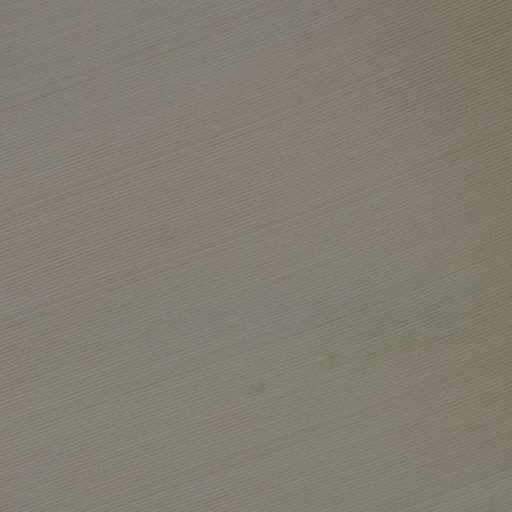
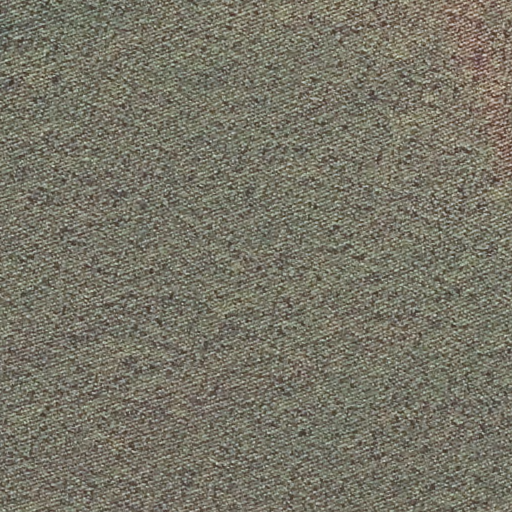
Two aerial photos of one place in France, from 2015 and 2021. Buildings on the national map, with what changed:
[]

